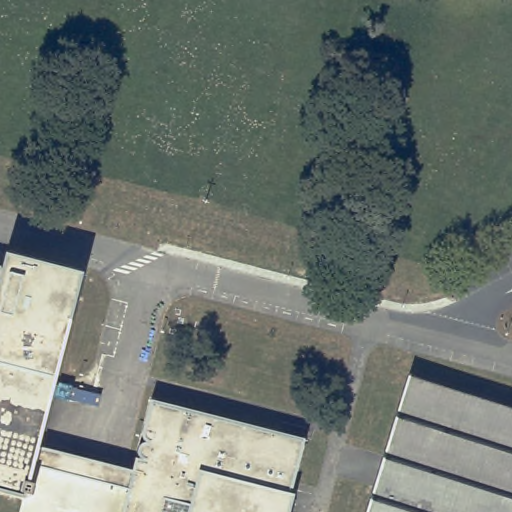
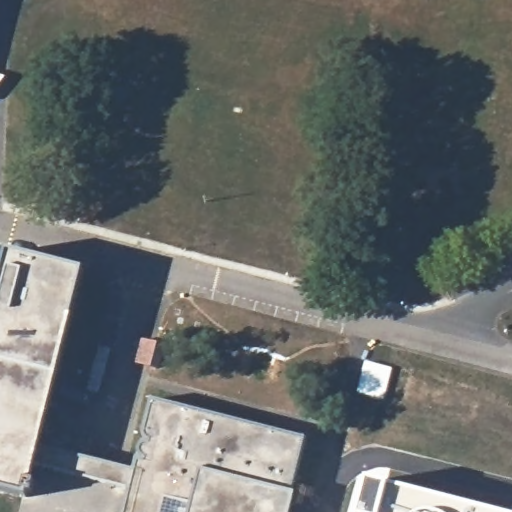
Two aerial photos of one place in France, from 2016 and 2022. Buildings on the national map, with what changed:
unchanged [(9,270),(12,256),(85,276),(41,450),(137,474),(140,461),(146,462),(147,460),(145,457),(143,455),(142,450),(144,447),(147,444),(150,443),(152,443),(149,440),(147,435),(147,430),(150,424),(156,402),(307,441),(289,512),(193,512),(194,507),(170,501),(167,512),(128,512),(133,490),(37,465),(32,481),(37,482),(35,492),(30,491),(29,496),(27,496),(0,489),(0,286),(5,287),(9,270)]
demolished [(413,376),(512,408),(512,512),(371,512),(413,376)]
new [(362,478),(491,512),(352,512),(362,478)]

